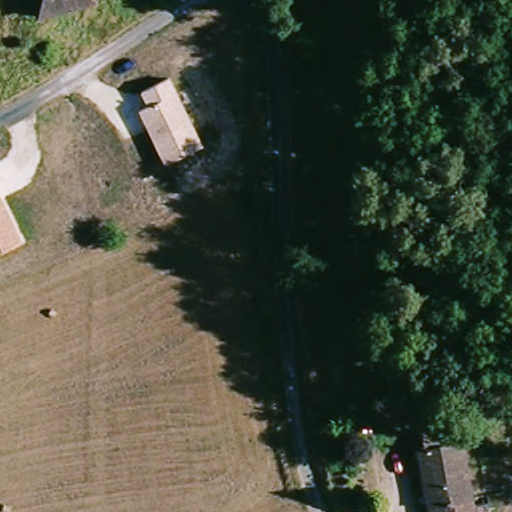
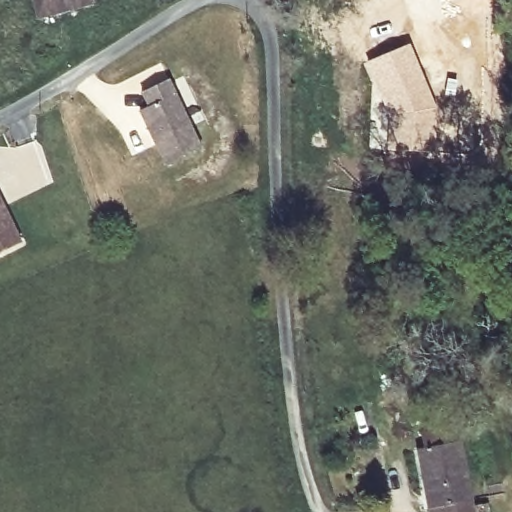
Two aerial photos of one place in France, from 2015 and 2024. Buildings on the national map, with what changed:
unchanged [(95,4),(40,19),(36,0),(93,0),(95,4)]
new [(410,42),(437,105),(447,147),(417,152),(385,153),(382,147),(377,130),(372,131),(370,83),(363,61),(410,42)]
unchanged [(170,78),(204,148),(167,165),(140,111),(150,105),(142,90),(170,78)]
unchanged [(0,251),(0,195),(22,241),(0,251)]
unchanged [(487,512),(434,512),(433,508),(429,510),(413,455),(454,442),(470,497),(464,500),(467,510),(485,505),(487,512)]

